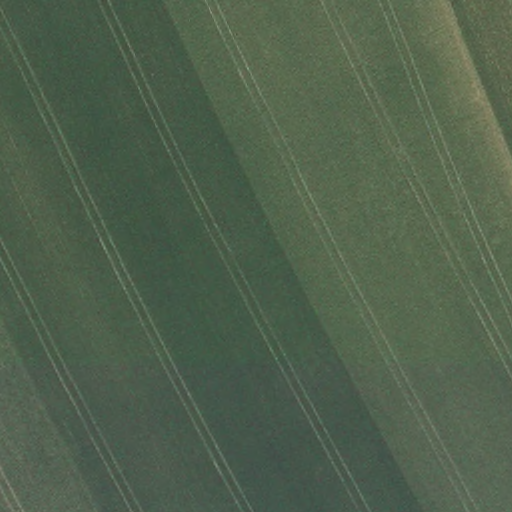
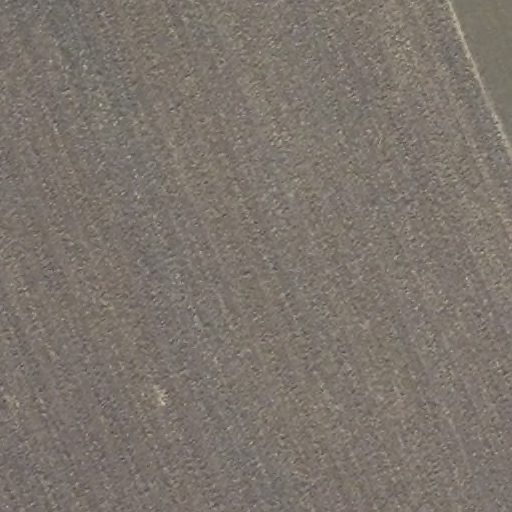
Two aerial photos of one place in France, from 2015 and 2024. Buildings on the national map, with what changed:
[]

